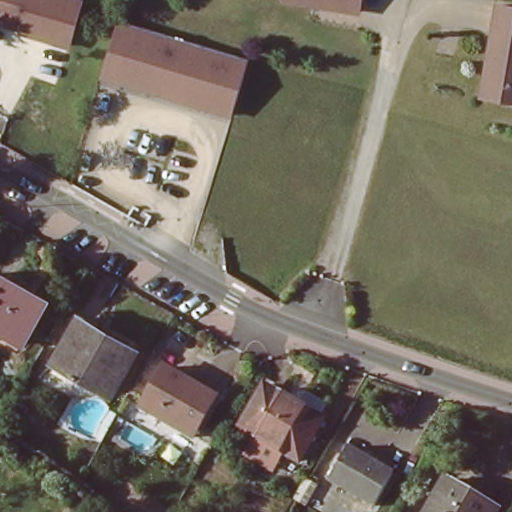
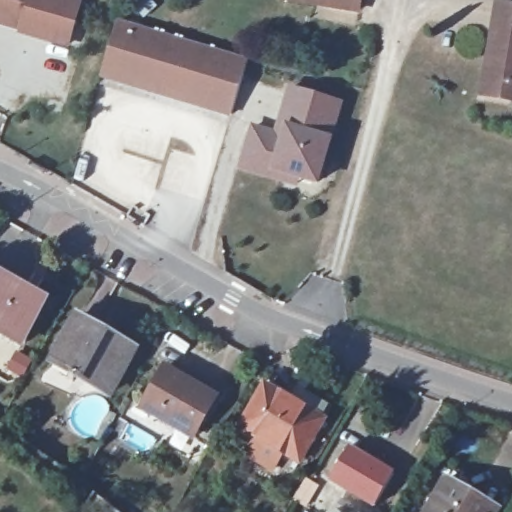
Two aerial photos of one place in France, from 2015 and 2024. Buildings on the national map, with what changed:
unchanged [(0,34),(0,0),(86,0),(88,0),(73,54),(0,34)]
unchanged [(329,6),(290,0),(360,0),(358,11),(329,6)]
unchanged [(481,101),(489,53),(495,54),(497,42),(492,41),(497,10),(512,13),(512,107),(508,106),(481,101)]
unchanged [(117,19),(248,56),(231,116),(100,79),(117,19)]
new [(254,130),(276,136),(289,90),(339,105),(316,184),(296,179),(294,185),(242,170),(244,163),(254,130)]
unchanged [(22,344),(0,331),(0,274),(46,300),(22,344)]
unchanged [(76,317),(134,351),(110,393),(52,360),(76,317)]
unchanged [(164,368),(181,378),(180,379),(215,399),(193,437),(141,408),(164,368)]
unchanged [(264,385),(324,419),(299,462),(239,427),(264,385)]
unchanged [(349,448),(394,474),(375,507),(329,480),(349,448)]
unchanged [(497,512),(427,512),(443,486),(446,479),(471,494),(498,509),(497,512)]

